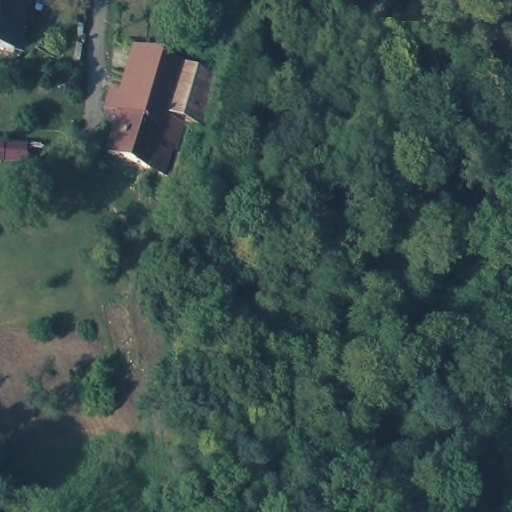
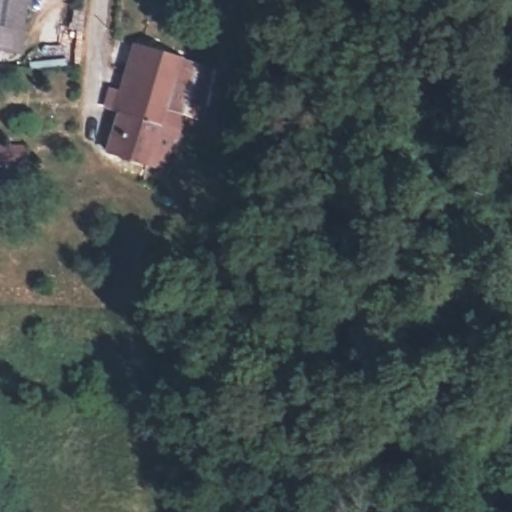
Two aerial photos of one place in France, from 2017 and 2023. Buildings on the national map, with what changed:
unchanged [(0,0),(21,0),(13,59),(0,57),(0,0)]
unchanged [(211,75),(196,126),(182,122),(164,177),(102,157),(134,50),(211,75)]

